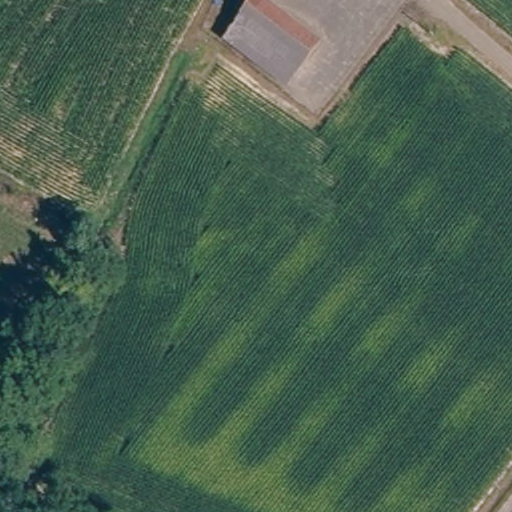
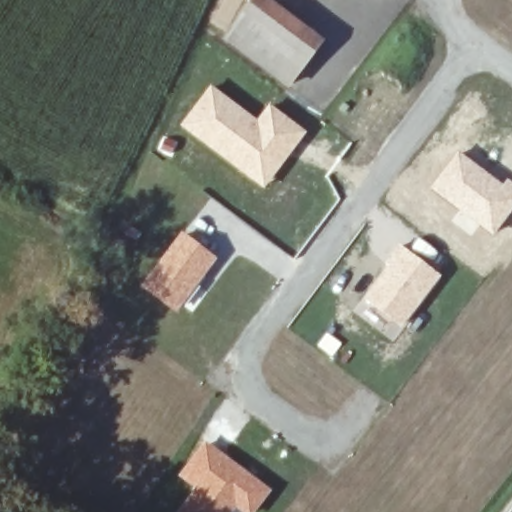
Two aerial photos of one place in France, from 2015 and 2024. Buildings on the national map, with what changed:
unchanged [(256,0),(264,0),(321,41),(289,85),(227,39),(256,0)]
new [(210,85),(256,119),(269,104),(307,132),(264,190),(179,126),(210,85)]
new [(502,184),(507,178),(512,182),(512,211),(493,236),(430,189),(458,152),(502,184)]
new [(180,231),(217,258),(175,315),(138,286),(180,231)]
new [(399,245),(441,275),(392,340),(353,310),(399,245)]
new [(175,476),(204,440),(271,490),(254,512),(175,512),(191,489),(175,476)]

